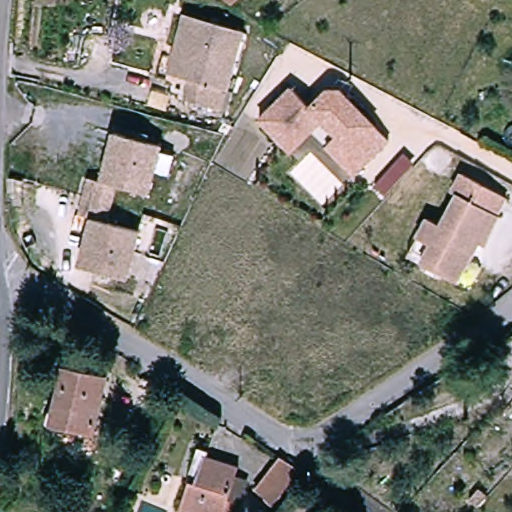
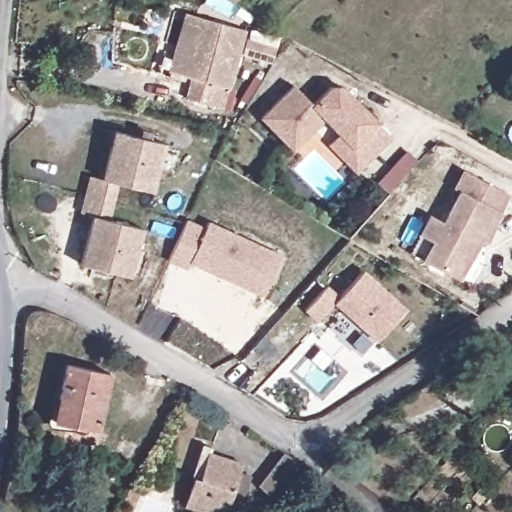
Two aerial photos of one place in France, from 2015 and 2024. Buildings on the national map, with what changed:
unchanged [(230,112),(191,106),(194,85),(182,83),(172,81),(182,21),(191,22),(242,30),(230,112)]
unchanged [(338,134),(320,119),(292,153),(257,125),(287,89),(307,107),(324,87),(336,86),(390,131),(358,170),(341,155),(329,145),(338,134)]
unchanged [(121,184),(113,222),(146,229),(135,279),(86,268),(97,219),(85,216),(93,179),(106,182),(117,133),(166,143),(155,191),(121,184)]
unchanged [(464,282),(428,264),(415,258),(434,218),(448,224),(463,193),(458,191),(467,172),(512,194),(504,211),(505,212),(490,244),(484,241),(476,258),(464,282)]
new [(268,298),(255,292),(194,267),(191,273),(172,265),(189,225),(207,233),(210,226),(272,253),(285,258),(268,298)]
new [(327,289),(339,300),(363,272),(407,309),(379,342),(335,305),(319,324),(306,314),(327,289)]
unchanged [(98,428),(53,420),(63,365),(107,372),(98,428)]
unchanged [(210,512),(180,502),(192,469),(186,467),(196,441),(209,446),(246,461),(227,512),(210,512)]
unchanged [(277,495),(262,484),(280,454),(298,463),(277,495)]

